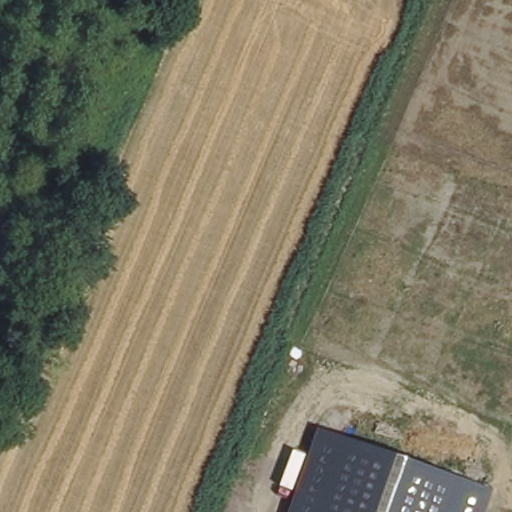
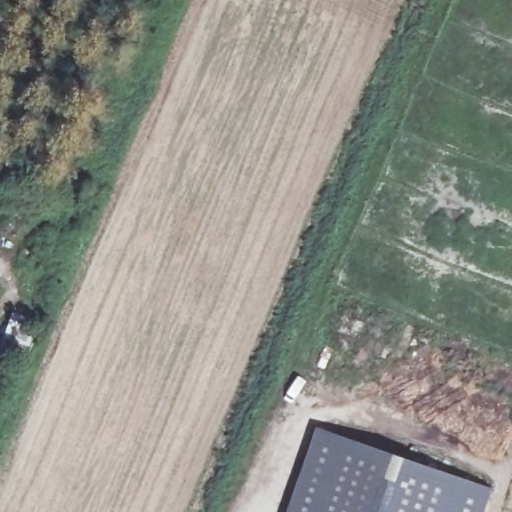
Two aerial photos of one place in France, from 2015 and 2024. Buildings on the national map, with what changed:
unchanged [(492,489),(484,512),(287,512),(315,428),(492,489)]

